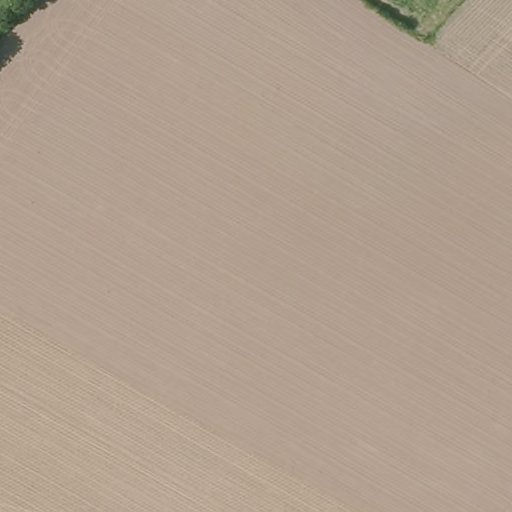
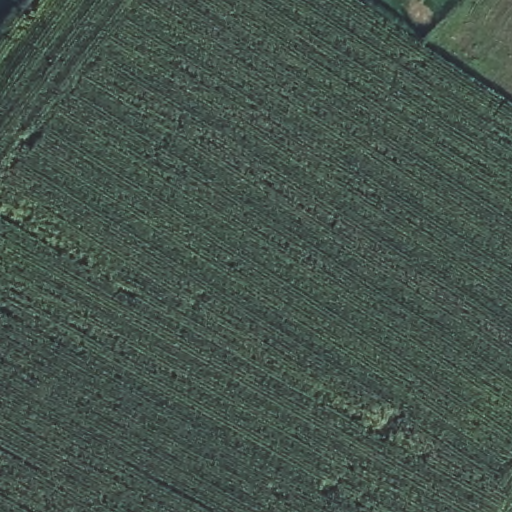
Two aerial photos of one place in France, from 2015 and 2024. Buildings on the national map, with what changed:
[]

